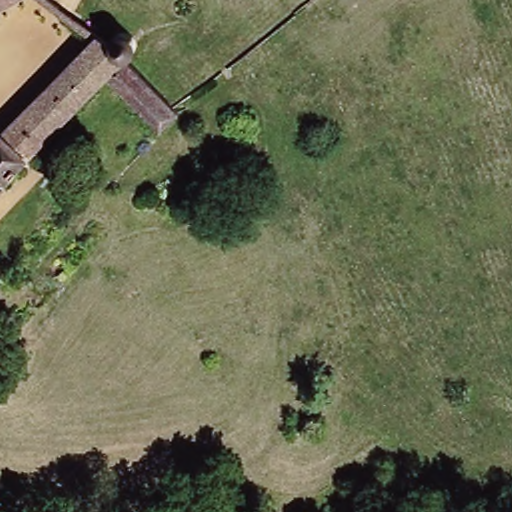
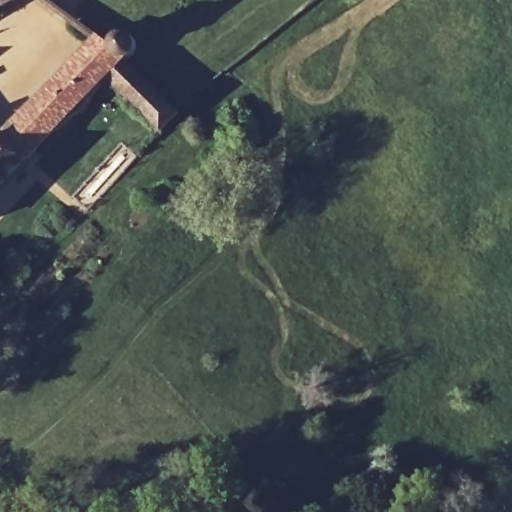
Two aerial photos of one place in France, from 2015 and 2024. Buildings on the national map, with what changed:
unchanged [(0,10),(0,0),(14,0),(0,10)]
unchanged [(100,50),(104,44),(109,41),(116,40),(125,45),(127,50),(128,57),(122,66),(117,70),(166,114),(172,120),(151,144),(96,95),(0,194),(0,132),(87,41),(100,50)]

